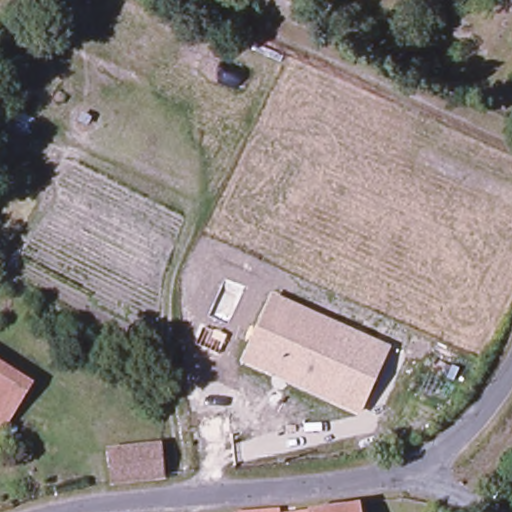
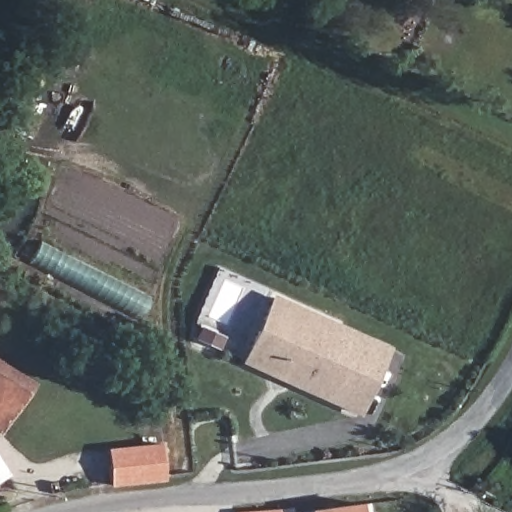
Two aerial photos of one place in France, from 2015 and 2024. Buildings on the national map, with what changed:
unchanged [(362,415),(241,362),(273,295),(393,346),(362,415)]
unchanged [(43,395),(19,431),(0,419),(0,366),(43,395)]
unchanged [(19,431),(9,446),(0,440),(0,419),(19,431)]
unchanged [(109,486),(106,455),(162,450),(165,484),(109,486)]
unchanged [(366,509),(366,512),(340,512),(366,509)]

